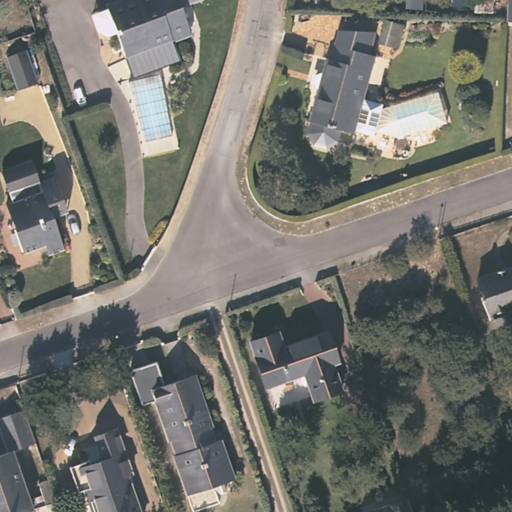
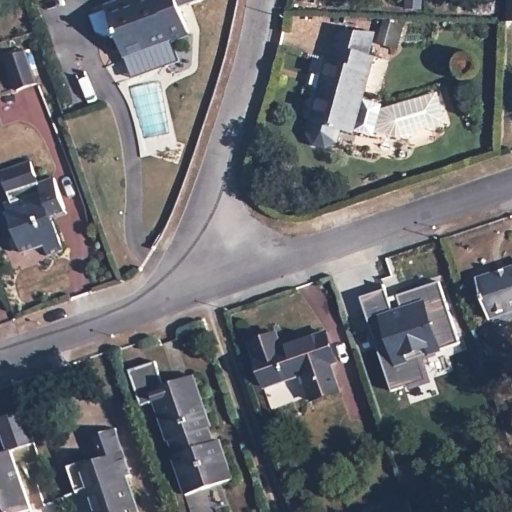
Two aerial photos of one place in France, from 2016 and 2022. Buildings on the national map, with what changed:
unchanged [(209,1),(180,11),(189,36),(170,43),(172,46),(125,62),(107,12),(140,0),(209,0),(209,1)]
unchanged [(507,20),(508,0),(512,0),(512,21),(507,20)]
unchanged [(379,40),(385,19),(401,23),(407,25),(402,46),(396,45),(379,40)]
unchanged [(437,90),(447,120),(399,136),(376,130),(374,135),(355,130),(354,134),(311,121),(320,90),(314,84),(316,74),(322,71),(325,72),(329,59),(333,60),(337,44),(375,55),(363,100),(383,104),(382,109),(437,90)]
unchanged [(25,51),(36,84),(17,90),(6,57),(25,51)]
unchanged [(0,170),(26,161),(34,184),(33,184),(35,192),(6,201),(0,183),(0,170)]
unchanged [(43,255),(39,246),(18,253),(0,204),(6,201),(35,192),(33,184),(34,184),(51,177),(61,206),(63,212),(48,217),(59,250),(43,255)]
unchanged [(491,317),(477,277),(512,266),(512,311),(491,317)]
new [(362,296),(386,289),(393,311),(403,308),(399,295),(441,282),(461,343),(441,347),(443,351),(436,353),(437,356),(427,360),(433,382),(409,390),(409,384),(393,390),(362,296)]
unchanged [(351,360),(345,362),(354,390),(328,400),(318,373),(281,386),(265,341),(293,332),(298,346),(341,332),(351,360)]
unchanged [(210,426),(207,427),(213,441),(219,439),(232,479),(186,495),(172,455),(174,455),(170,440),(168,440),(151,388),(174,381),(193,375),(210,426)]
unchanged [(1,413),(29,405),(39,438),(17,445),(33,493),(46,490),(43,476),(52,473),(60,496),(37,503),(39,511),(36,512),(22,512),(21,510),(14,512),(0,512),(0,451),(12,447),(1,413)]
unchanged [(129,475),(142,512),(97,512),(89,488),(82,490),(74,467),(93,460),(94,464),(107,460),(98,435),(119,428),(134,473),(129,475)]
new [(370,512),(409,499),(412,512),(370,512)]

